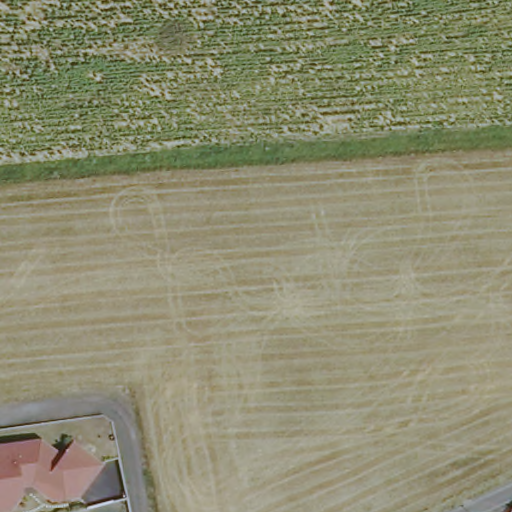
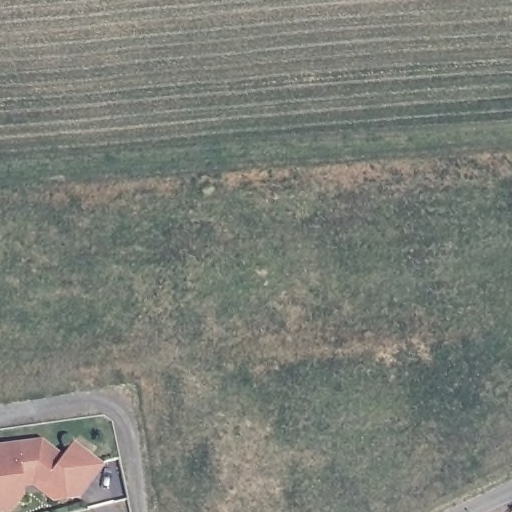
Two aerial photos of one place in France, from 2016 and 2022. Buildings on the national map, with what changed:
unchanged [(71,439),(102,461),(77,495),(48,498),(30,483),(22,484),(22,492),(7,510),(0,511),(0,443),(39,438),(60,451),(71,439)]

